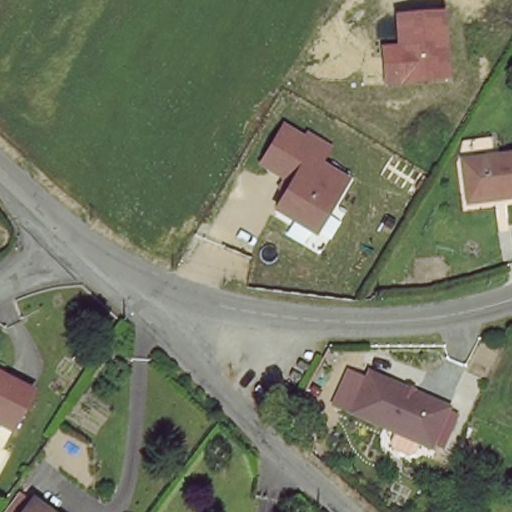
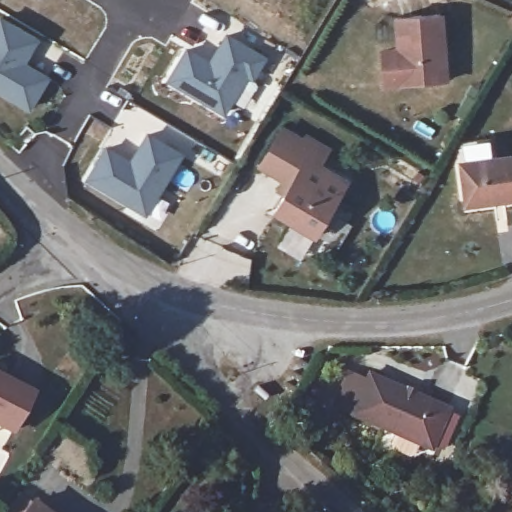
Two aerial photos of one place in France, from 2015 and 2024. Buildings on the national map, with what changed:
unchanged [(441,10),(449,80),(383,86),(379,49),(395,46),(391,15),(441,10)]
new [(0,95),(0,15),(39,38),(26,61),(50,77),(30,112),(0,95)]
new [(186,45),(210,59),(226,30),(266,56),(253,80),(247,76),(224,116),(165,80),(186,45)]
unchanged [(271,212),(286,184),(258,168),(282,126),(304,138),(306,135),(331,147),(322,165),(350,180),(315,239),(271,212)]
new [(105,144),(130,159),(147,130),(184,154),(146,216),(85,180),(105,144)]
unchanged [(460,161),(512,154),(512,200),(498,202),(463,206),(462,195),(460,161)]
unchanged [(445,406),(428,446),(349,413),(366,373),(445,406)]
unchanged [(32,395),(9,434),(0,429),(0,376),(32,395)]
unchanged [(31,506),(40,512),(26,512),(31,506)]

